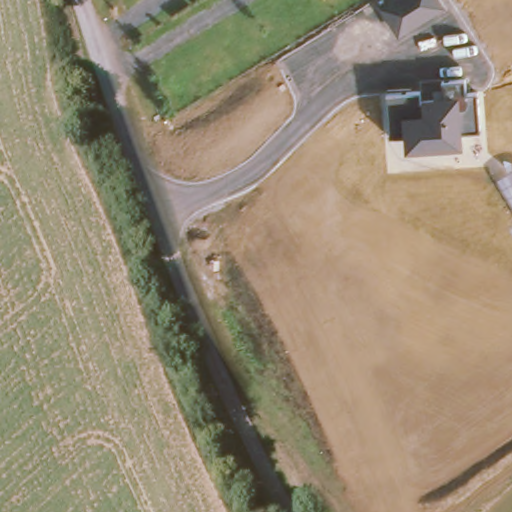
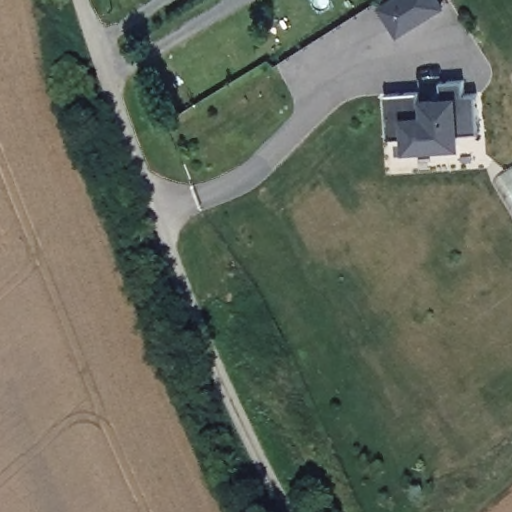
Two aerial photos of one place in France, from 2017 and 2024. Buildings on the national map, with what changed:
unchanged [(379,6),(390,0),(441,0),(446,7),(399,37),(379,6)]
unchanged [(420,92),(422,98),(447,97),(444,82),(465,80),(466,93),(478,92),(480,132),(462,131),(464,148),(407,152),(406,133),(391,136),(388,94),(420,92)]

